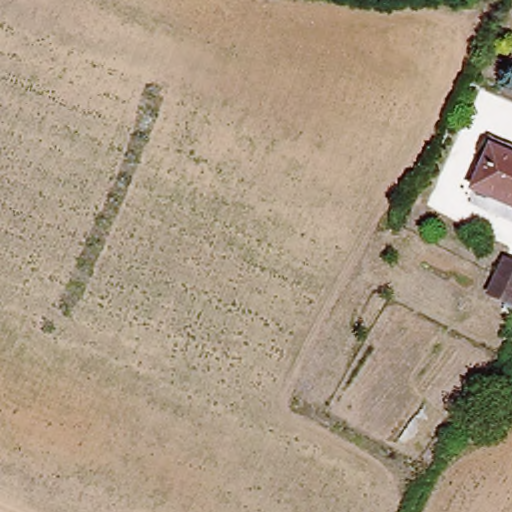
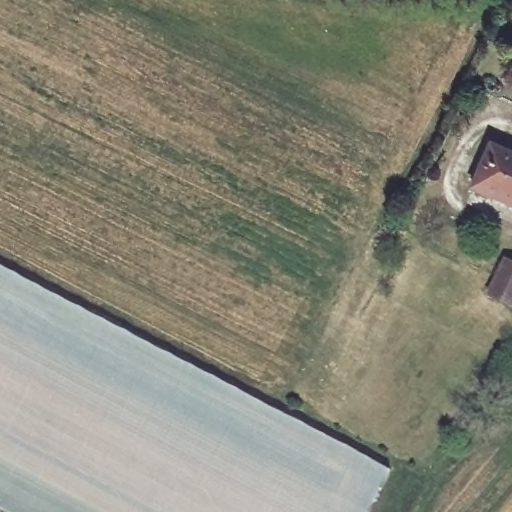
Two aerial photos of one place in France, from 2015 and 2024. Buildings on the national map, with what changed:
unchanged [(492,146),(512,155),(512,207),(473,190),(492,146)]
unchanged [(512,304),(490,294),(505,261),(512,264),(512,304)]
new [(5,512),(0,509),(0,266),(388,468),(367,512),(5,512)]

